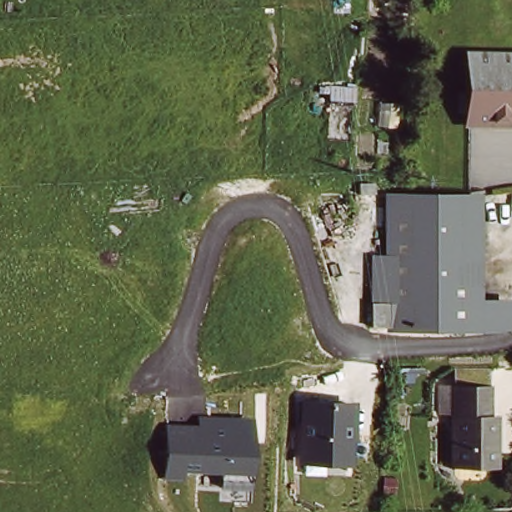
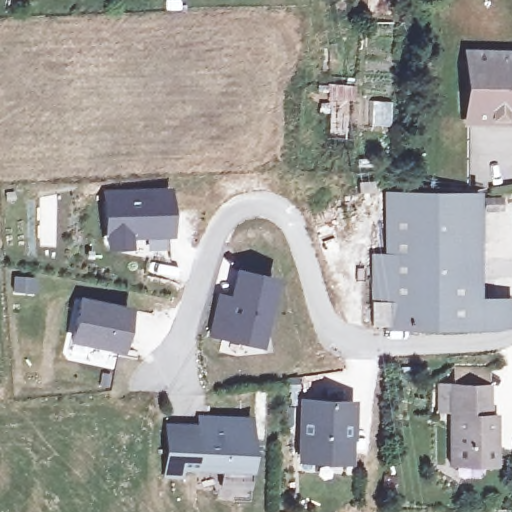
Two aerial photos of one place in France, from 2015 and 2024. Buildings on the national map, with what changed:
unchanged [(461,49),(512,50),(512,124),(464,124),(461,49)]
new [(102,191),(170,188),(172,236),(132,238),(133,250),(106,251),(102,191)]
unchanged [(370,325),(369,299),(386,299),(386,194),(411,194),(411,196),(402,325),(370,325)]
unchanged [(512,306),(512,326),(402,325),(411,196),(411,194),(445,194),(461,194),(471,194),(469,209),(473,305),(512,306)]
new [(216,291),(227,293),(233,266),(276,275),(260,347),(207,336),(216,291)]
new [(70,343),(79,297),(131,307),(122,353),(70,343)]
unchanged [(456,463),(457,387),(489,386),(490,417),(500,416),(501,463),(456,463)]
unchanged [(354,465),(297,462),(300,398),(358,400),(354,465)]
unchanged [(253,487),(220,487),(220,477),(185,476),(185,481),(165,481),(165,422),(196,423),(196,412),(254,413),(253,487)]

